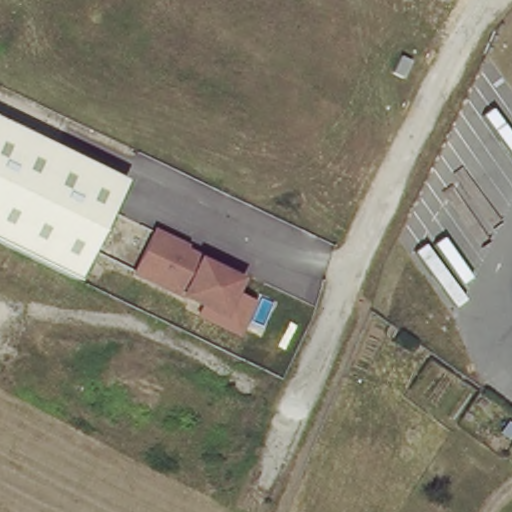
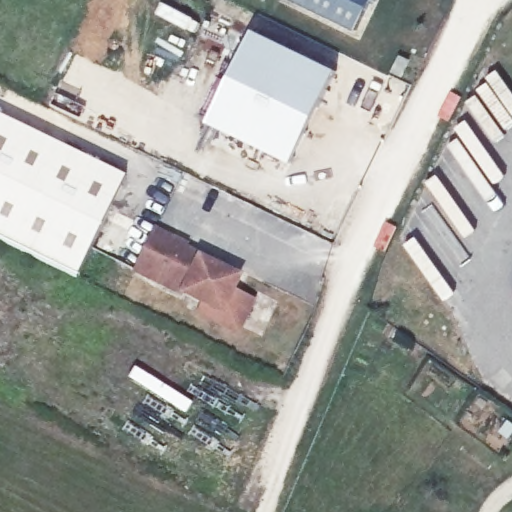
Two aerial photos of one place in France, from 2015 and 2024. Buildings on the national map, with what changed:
new [(353,31),(290,0),(369,0),(353,31)]
new [(336,72),(293,165),(209,124),(253,31),(336,72)]
unchanged [(125,186),(80,279),(0,239),(0,126),(125,186)]
unchanged [(241,295),(257,306),(243,339),(193,316),(197,308),(135,278),(155,235),(246,280),(241,295)]

